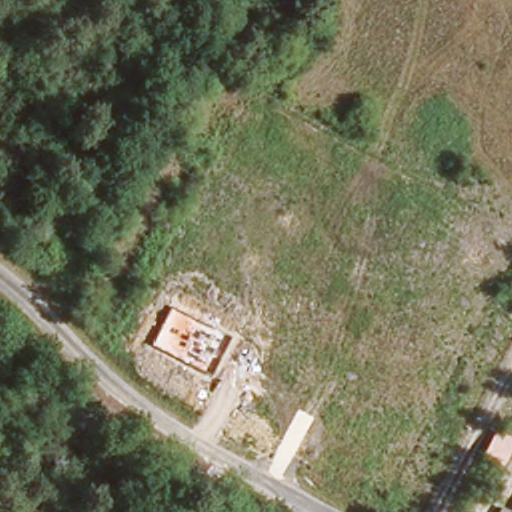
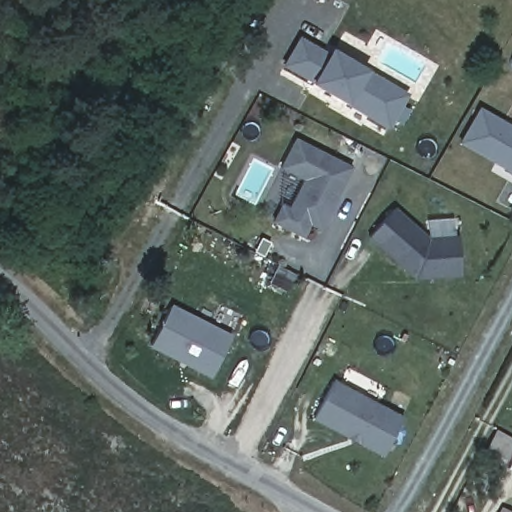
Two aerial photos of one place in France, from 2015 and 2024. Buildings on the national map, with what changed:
new [(298,37),(328,55),(330,50),(408,95),(402,106),(410,110),(401,126),(393,121),(389,129),(281,67),(298,37)]
new [(512,175),(457,144),(478,109),(512,127),(512,175)]
new [(320,231),(309,226),(302,240),(271,225),(281,204),(289,209),(302,182),(278,169),(294,139),(351,169),(320,231)]
new [(461,276),(415,280),(367,237),(394,209),(429,240),(457,237),(461,276)]
unchanged [(209,376),(150,345),(171,305),(230,335),(209,376)]
new [(384,455),(383,458),(311,420),(333,380),(403,417),(384,455)]
unchanged [(509,512),(497,512),(499,507),(509,512)]

